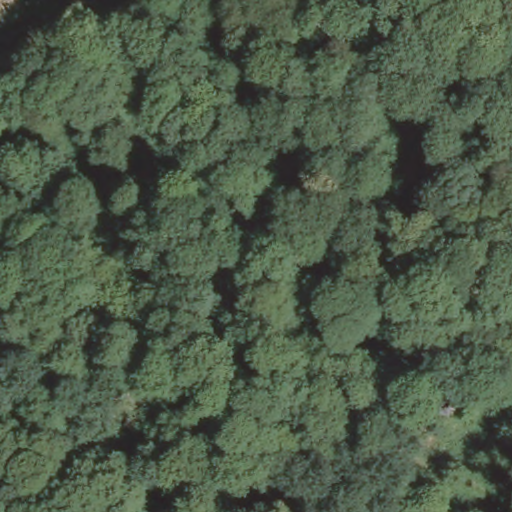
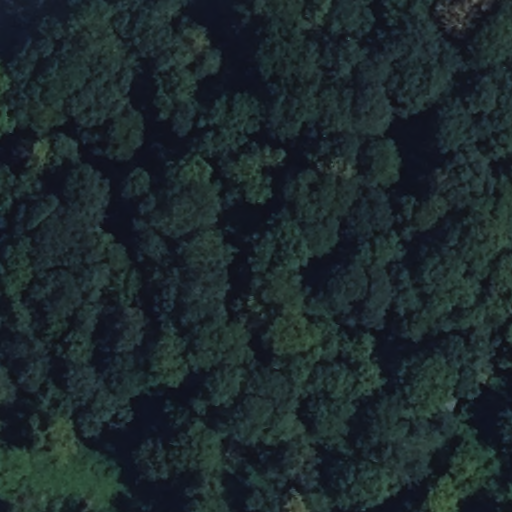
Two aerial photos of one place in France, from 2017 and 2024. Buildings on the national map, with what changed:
unchanged [(432,424),(439,414),(451,422),(445,432),(432,424)]

